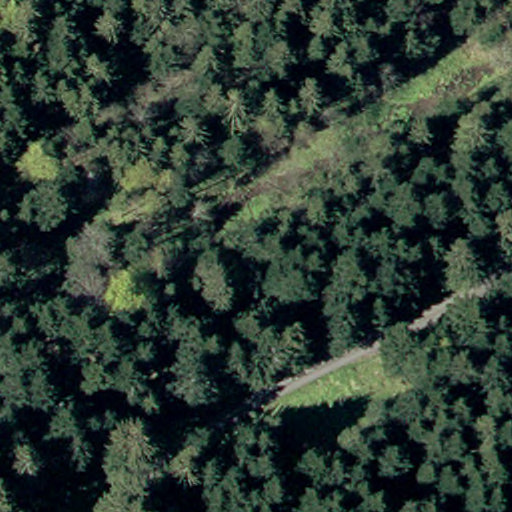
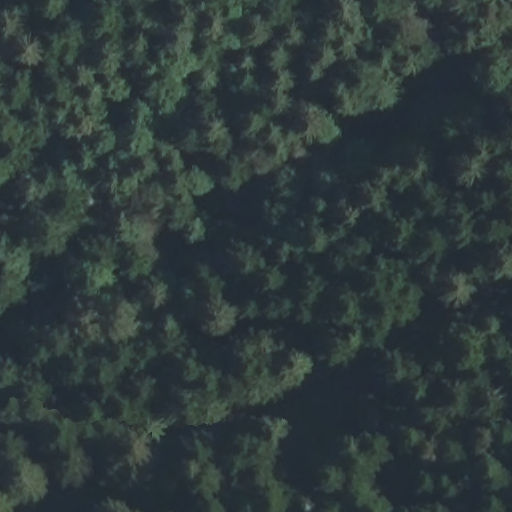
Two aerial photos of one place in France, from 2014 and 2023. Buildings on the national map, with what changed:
[]

